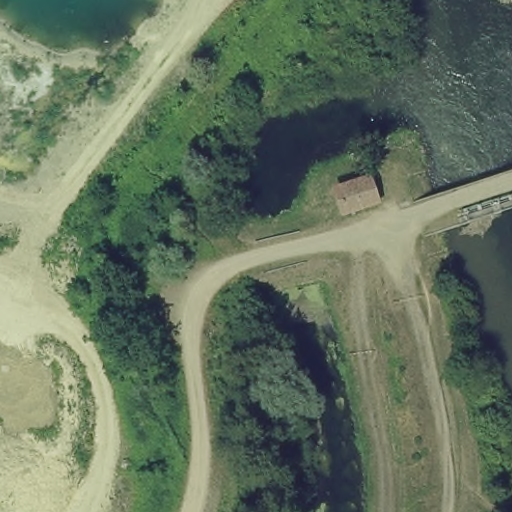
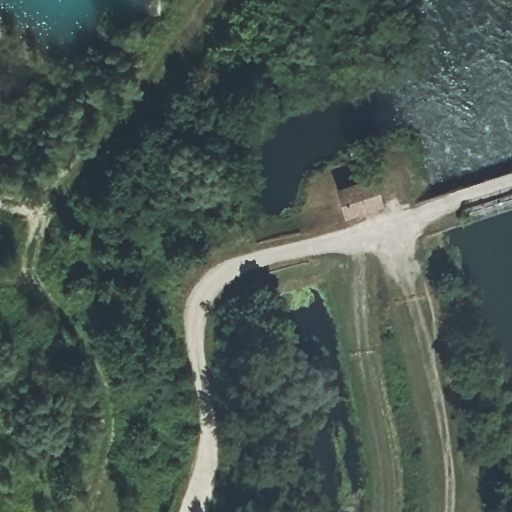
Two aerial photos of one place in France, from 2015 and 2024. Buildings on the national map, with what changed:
unchanged [(374,169),(389,204),(347,220),(334,185),(374,169)]

